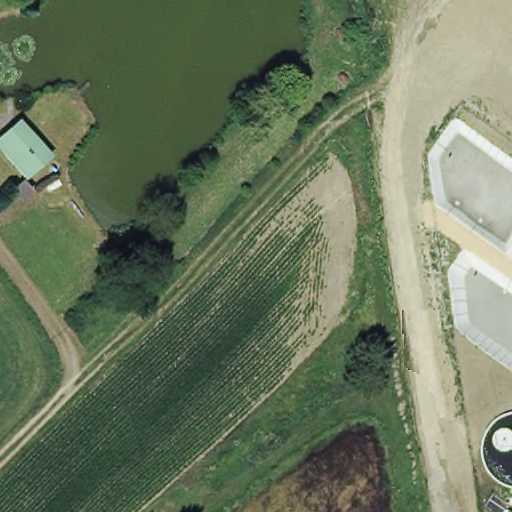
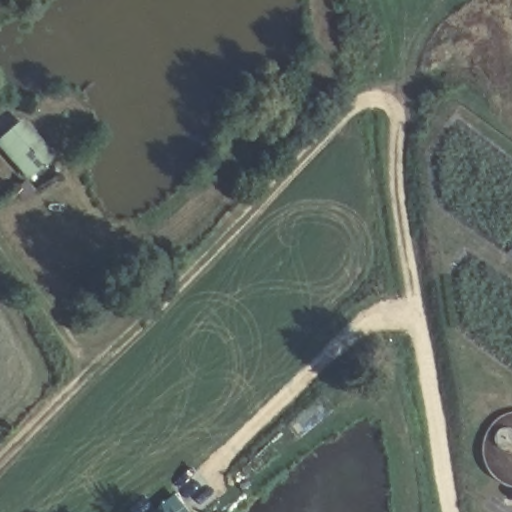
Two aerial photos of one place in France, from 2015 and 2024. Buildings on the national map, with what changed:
unchanged [(0,141),(24,119),(57,156),(30,181),(0,151),(0,141)]

